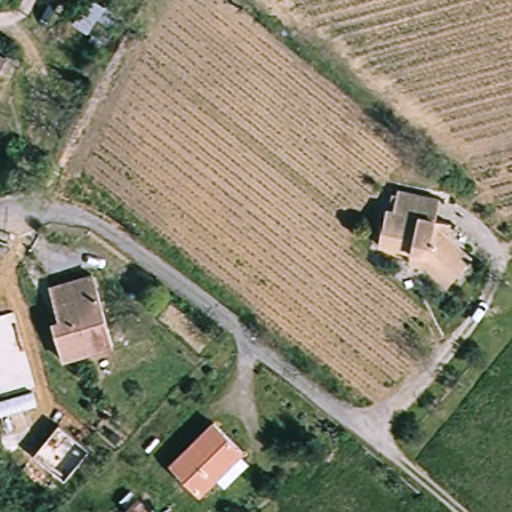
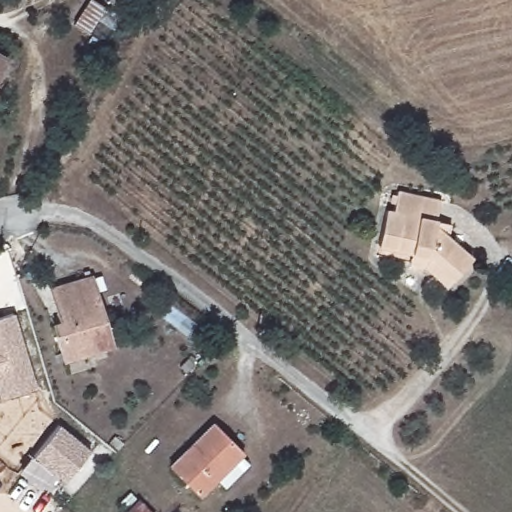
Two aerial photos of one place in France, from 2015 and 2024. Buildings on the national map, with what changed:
unchanged [(86,34),(73,25),(89,0),(91,0),(102,7),(86,34)]
unchanged [(120,18),(112,30),(97,20),(105,8),(120,18)]
unchanged [(0,66),(0,56),(4,58),(0,66)]
unchanged [(428,266),(413,262),(415,253),(382,246),(390,210),(397,212),(402,190),(444,200),(440,221),(453,224),(451,236),(476,258),(455,282),(451,286),(428,266)]
unchanged [(91,276),(112,346),(63,361),(52,325),(58,322),(48,288),(91,276)]
unchanged [(0,396),(0,315),(13,311),(36,387),(0,396)]
unchanged [(237,453),(245,461),(223,483),(215,475),(198,491),(169,461),(212,418),(242,448),(237,453)]
new [(93,449),(67,481),(35,456),(60,425),(93,449)]
unchanged [(137,498),(150,512),(126,512),(125,510),(137,498)]

